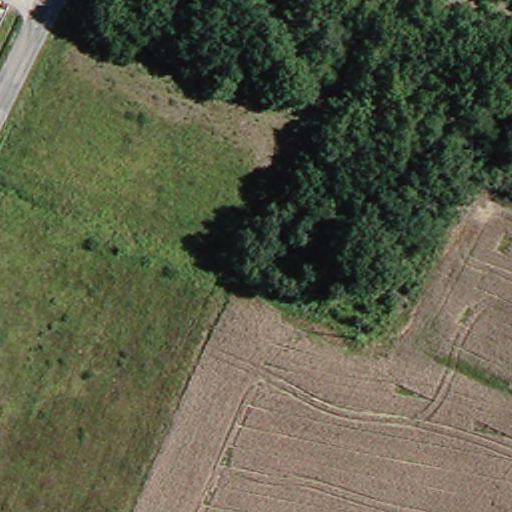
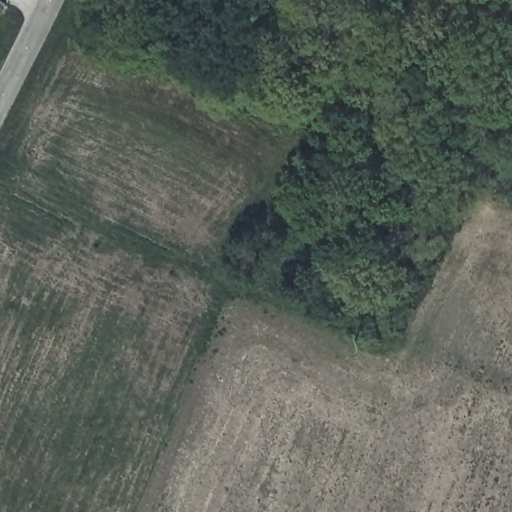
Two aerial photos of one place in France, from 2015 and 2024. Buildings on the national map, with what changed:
[]

